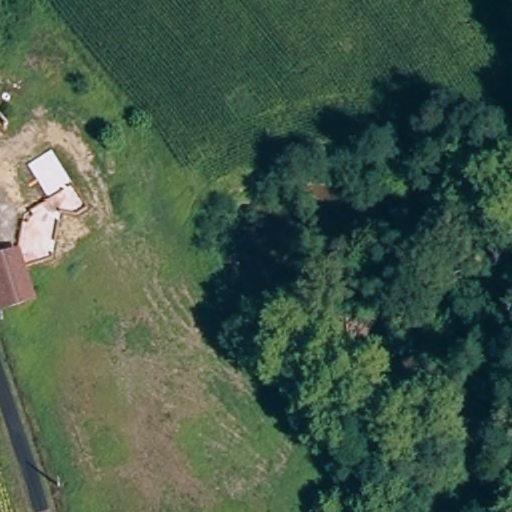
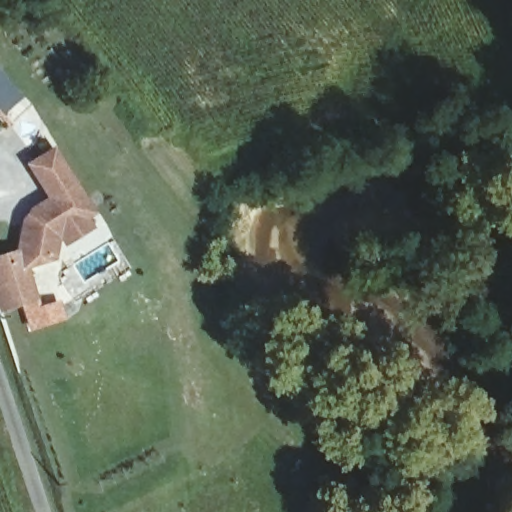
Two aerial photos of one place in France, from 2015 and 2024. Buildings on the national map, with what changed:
new [(0,74),(21,97),(0,116),(0,74)]
new [(87,220),(95,230),(65,249),(59,240),(55,261),(27,270),(37,302),(0,313),(0,255),(16,250),(22,218),(27,210),(46,197),(25,164),(52,147),(95,214),(87,220)]
demolished [(27,165),(46,152),(55,164),(60,161),(65,167),(61,170),(69,178),(49,193),(27,165)]
demolished [(28,305),(0,312),(0,264),(14,260),(28,305)]

